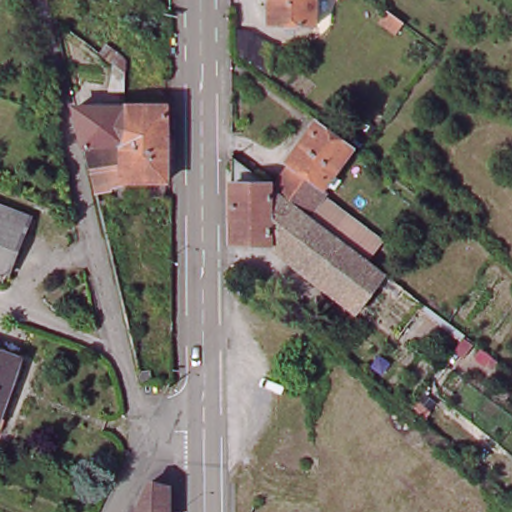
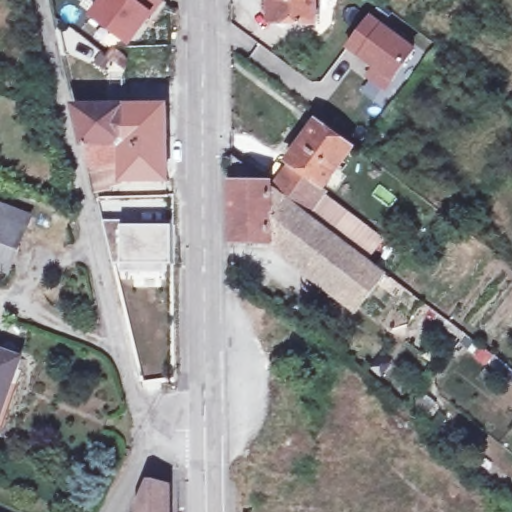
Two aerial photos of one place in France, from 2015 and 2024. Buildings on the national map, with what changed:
new [(155,17),(153,17),(131,47),(90,16),(103,0),(160,0),(165,4),(155,17)]
unchanged [(272,25),(273,0),(318,0),(318,27),(272,25)]
unchanged [(408,22),(401,32),(385,20),(392,11),(408,22)]
new [(372,17),(417,50),(388,89),(372,76),(378,67),(350,46),(372,17)]
unchanged [(101,52),(105,47),(110,50),(113,46),(122,54),(127,62),(127,72),(101,52)]
unchanged [(108,167),(112,184),(98,186),(92,162),(77,102),(126,102),(125,161),(114,160),(115,166),(108,167)]
unchanged [(126,102),(168,102),(170,177),(125,177),(125,161),(126,102)]
unchanged [(315,127),(350,154),(320,194),(285,167),(315,127)]
unchanged [(228,247),(228,161),(268,191),(266,249),(228,247)]
unchanged [(285,167),(320,194),(313,202),(302,217),(268,191),(285,167)]
unchanged [(361,315),(312,277),(309,281),(266,249),(268,191),(302,217),(362,263),(386,281),(361,315)]
unchanged [(7,272),(0,269),(0,202),(29,214),(7,272)]
unchanged [(324,211),(326,209),(359,232),(357,235),(375,247),(362,263),(302,217),(313,202),(324,211)]
new [(172,223),(170,267),(121,266),(120,223),(172,223)]
unchanged [(1,424),(0,424),(0,348),(25,357),(1,424)]
unchanged [(147,488),(165,492),(165,512),(135,512),(147,488)]

